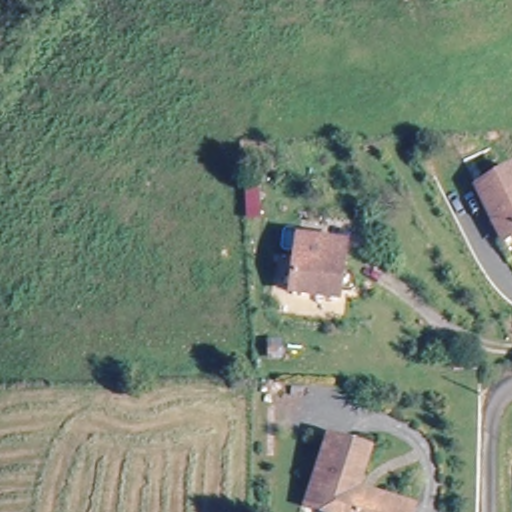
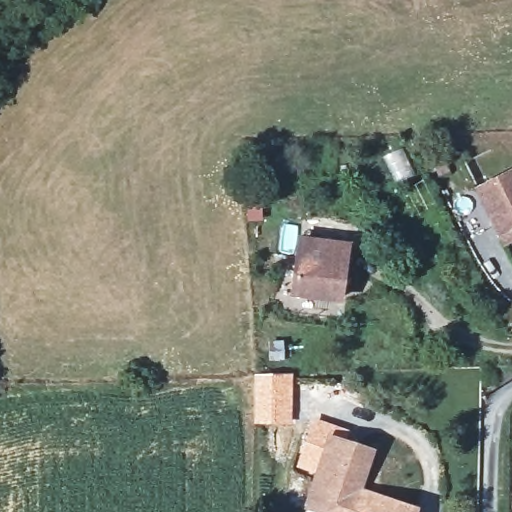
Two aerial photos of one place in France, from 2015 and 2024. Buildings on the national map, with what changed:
unchanged [(512,174),(512,242),(498,250),(473,194),(512,174)]
unchanged [(288,302),(298,247),(344,254),(335,307),(288,302)]
new [(254,374),(292,373),(292,426),(254,424),(254,374)]
unchanged [(333,440),(372,453),(361,494),(411,512),(323,512),(309,507),(333,440)]

